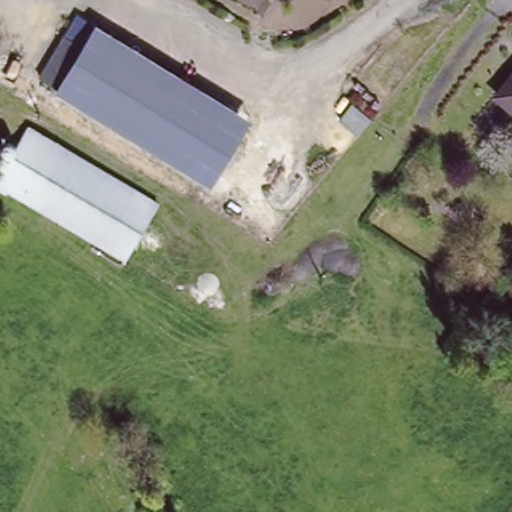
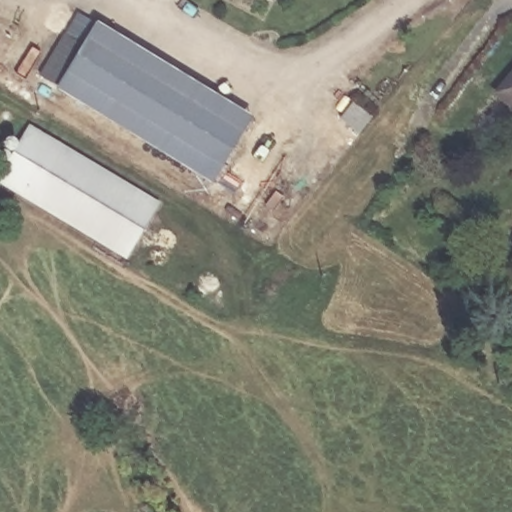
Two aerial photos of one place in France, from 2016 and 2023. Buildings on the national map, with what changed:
unchanged [(214,179),(60,89),(91,38),(101,22),(254,112),(245,128),(214,179)]
unchanged [(512,70),(512,109),(493,95),(512,70)]
unchanged [(160,206),(128,259),(1,184),(32,131),(160,206)]

